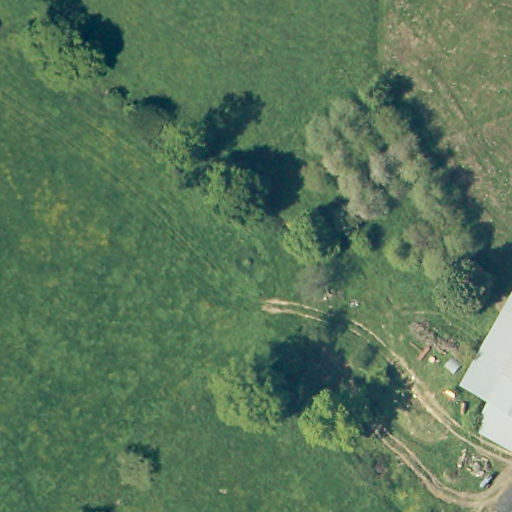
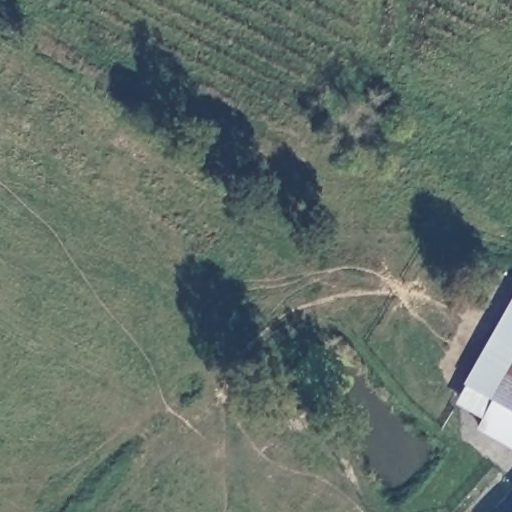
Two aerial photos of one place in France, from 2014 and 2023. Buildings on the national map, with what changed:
unchanged [(481,428),(499,403),(493,398),(472,382),(512,322),(512,450),(481,428)]
unchanged [(500,512),(502,510),(497,506),(512,485),(512,512),(500,512)]

